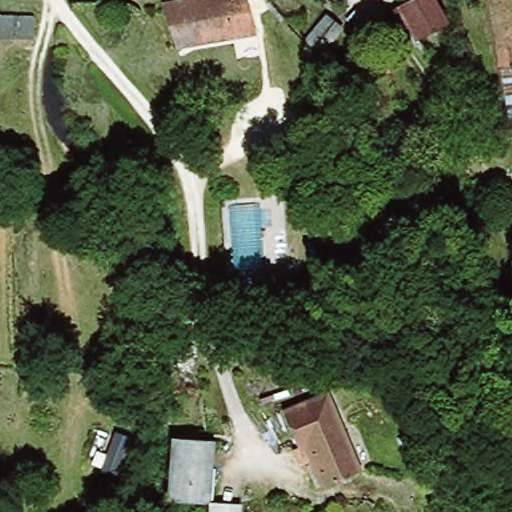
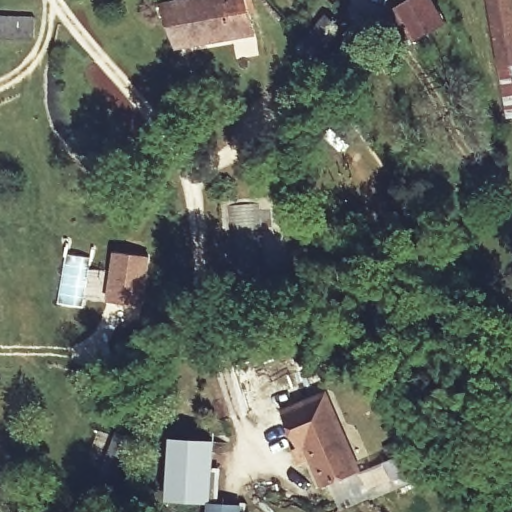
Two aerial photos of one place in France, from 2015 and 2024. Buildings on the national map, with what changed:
unchanged [(198,0),(244,0),(251,33),(171,48),(163,8),(198,0)]
unchanged [(414,41),(393,16),(411,0),(433,0),(446,15),(414,41)]
unchanged [(512,13),(512,111),(508,94),(482,12),(510,6),(512,13)]
unchanged [(291,37),(311,13),(326,26),(306,51),(291,37)]
unchanged [(31,41),(0,41),(0,17),(33,19),(31,41)]
unchanged [(68,119),(47,115),(50,96),(71,101),(68,119)]
new [(142,308),(105,303),(113,253),(149,259),(142,308)]
unchanged [(306,448),(301,450),(286,408),(329,392),(359,473),(321,487),(306,448)]
unchanged [(131,437),(116,480),(98,473),(113,431),(131,437)]
unchanged [(205,506),(166,501),(172,441),(211,445),(205,506)]
unchanged [(241,505),(241,512),(208,512),(208,503),(241,505)]

